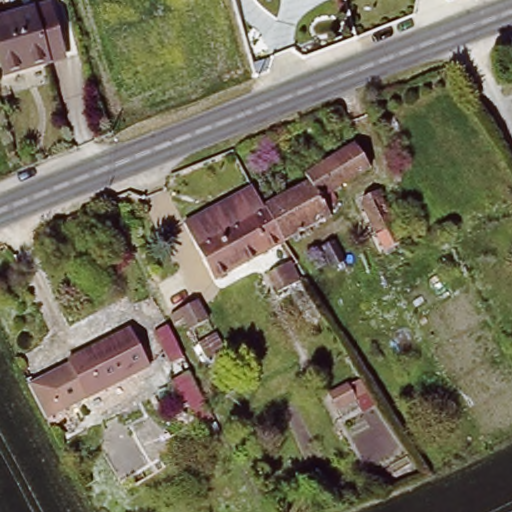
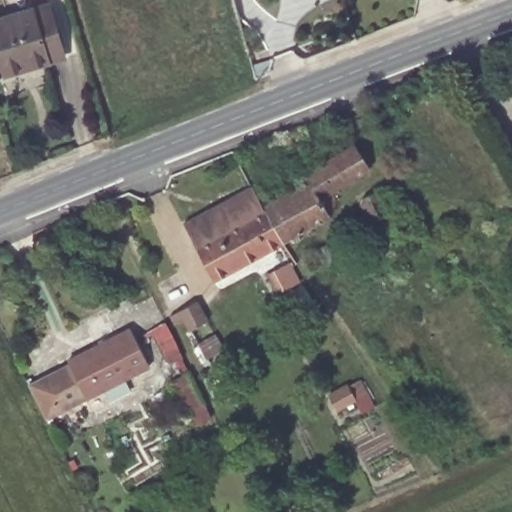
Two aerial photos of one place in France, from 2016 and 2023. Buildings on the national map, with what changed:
unchanged [(69,60),(5,79),(0,59),(0,18),(52,2),(69,60)]
unchanged [(300,247),(296,242),(288,247),(269,212),(315,186),(311,180),(360,150),(375,175),(336,199),(340,205),(340,209),(330,214),(335,221),(302,239),(305,244),(300,247)]
unchanged [(217,287),(198,252),(201,250),(190,231),(223,212),(237,204),(255,194),(266,213),(269,212),(288,247),(217,287)]
unchanged [(363,202),(376,195),(388,218),(398,213),(405,228),(401,230),(409,246),(385,257),(360,209),(363,202)]
unchanged [(332,241),(343,262),(330,268),(320,247),(332,241)]
unchanged [(280,267),(290,287),(277,293),(268,273),(280,267)]
unchanged [(197,302),(207,322),(189,332),(183,321),(174,326),(170,318),(197,302)]
unchanged [(69,366),(67,362),(130,332),(148,368),(45,418),(28,386),(69,366)]
unchanged [(338,410),(329,395),(346,384),(355,399),(338,410)]

